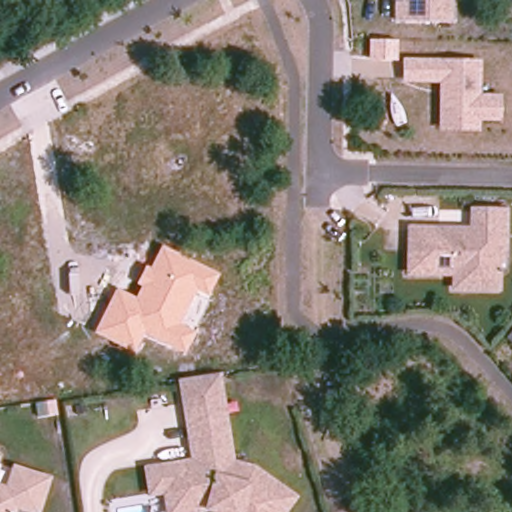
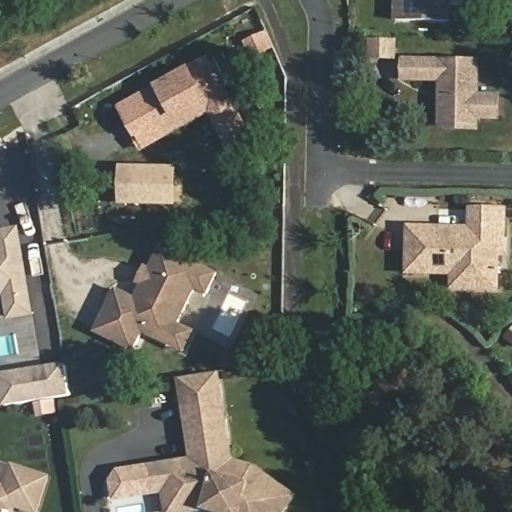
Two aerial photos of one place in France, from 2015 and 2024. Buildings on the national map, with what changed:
unchanged [(395,20),(396,0),(403,0),(452,0),(451,20),(395,20)]
new [(155,85),(190,67),(209,56),(250,130),(225,144),(210,115),(167,139),(144,151),(120,109),(142,92),(155,85)]
unchanged [(502,120),(481,121),(481,132),(439,132),(438,82),(401,82),(401,56),(481,58),(481,93),(501,94),(502,120)]
new [(172,169),(170,202),(119,198),(121,165),(172,169)]
unchanged [(505,242),(500,243),(500,290),(447,290),(448,275),(403,275),(404,223),(468,225),(467,206),(505,207),(505,242)]
new [(30,312),(10,316),(5,291),(0,292),(0,231),(16,229),(30,312)]
unchanged [(207,298),(196,292),(180,324),(195,331),(185,353),(142,334),(134,352),(94,333),(116,287),(136,297),(141,286),(137,285),(146,266),(151,267),(163,243),(220,272),(207,298)]
new [(3,407),(0,392),(0,377),(65,365),(70,395),(20,403),(3,407)]
unchanged [(285,512),(214,512),(214,511),(205,508),(188,512),(165,512),(162,492),(146,495),(114,503),(110,480),(119,472),(190,457),(176,378),(222,371),(236,457),(256,465),(297,495),(285,512)]
new [(52,413),(39,415),(36,400),(50,398),(52,413)]
unchanged [(17,509),(16,512),(0,512),(0,482),(7,484),(13,463),(52,475),(42,512),(28,512),(17,509)]

